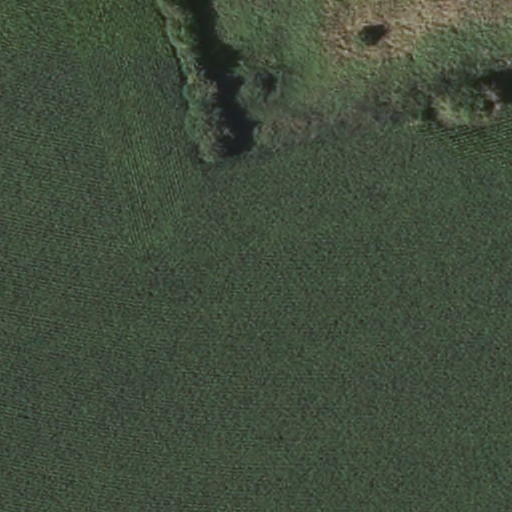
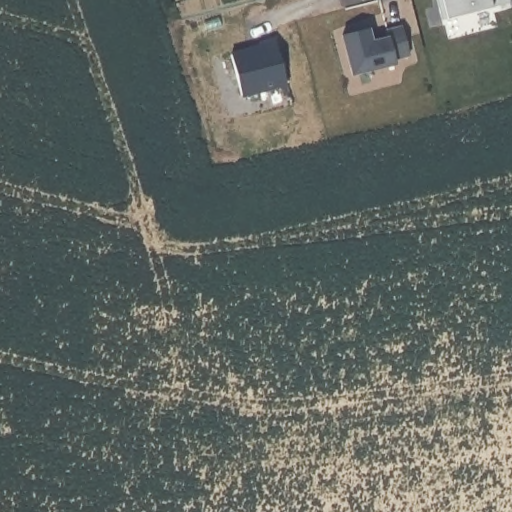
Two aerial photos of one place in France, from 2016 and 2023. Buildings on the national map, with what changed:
new [(435,0),(507,0),(509,7),(442,25),(435,0)]
new [(342,41),(368,34),(371,47),(388,43),(387,36),(403,32),(410,61),(395,64),(397,70),(353,81),(342,41)]
new [(229,60),(258,52),(258,50),(274,46),(285,90),(239,102),(229,60)]

